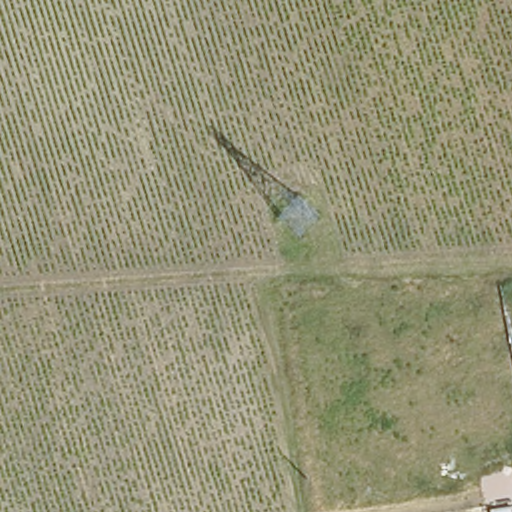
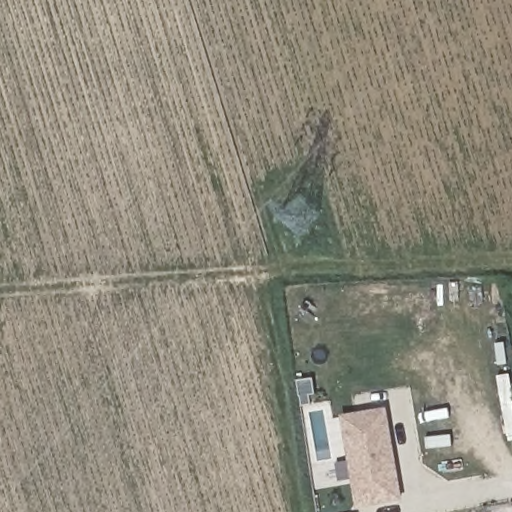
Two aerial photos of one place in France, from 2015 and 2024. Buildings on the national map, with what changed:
new [(386,409),(402,498),(359,505),(344,416),(386,409)]

